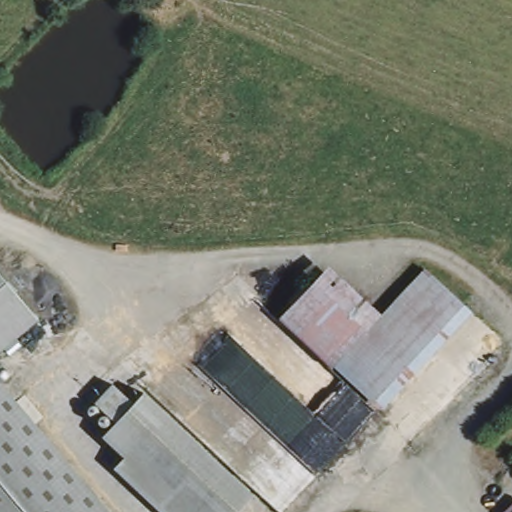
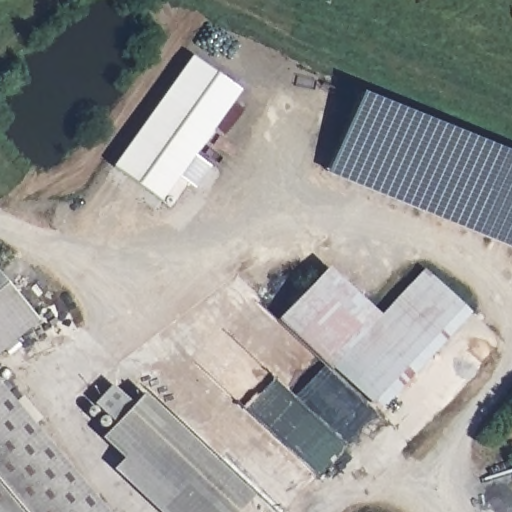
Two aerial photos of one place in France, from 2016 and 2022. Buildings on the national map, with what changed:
new [(240,89),(161,200),(112,165),(192,55),(240,89)]
new [(512,154),(512,246),(327,169),(360,90),(512,154)]
unchanged [(382,315),(427,271),(472,311),(382,414),(281,319),(331,264),(382,315)]
unchanged [(37,321),(0,353),(0,276),(37,321)]
new [(1,369),(4,370),(6,371),(7,375),(6,379),(2,381),(111,512),(75,512),(0,421),(0,370),(1,369)]
unchanged [(132,403),(145,391),(252,488),(246,497),(212,469),(173,512),(161,512),(111,468),(122,458),(102,439),(106,435),(84,412),(112,384),(132,403)]
unchanged [(75,512),(0,512),(0,421),(75,512)]
unchanged [(246,497),(256,505),(249,512),(173,512),(212,469),(246,497)]

